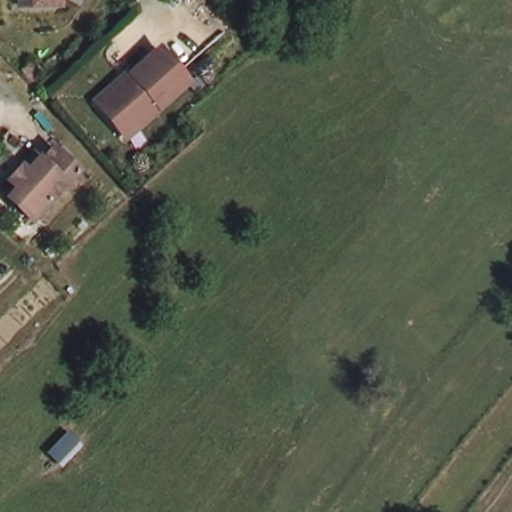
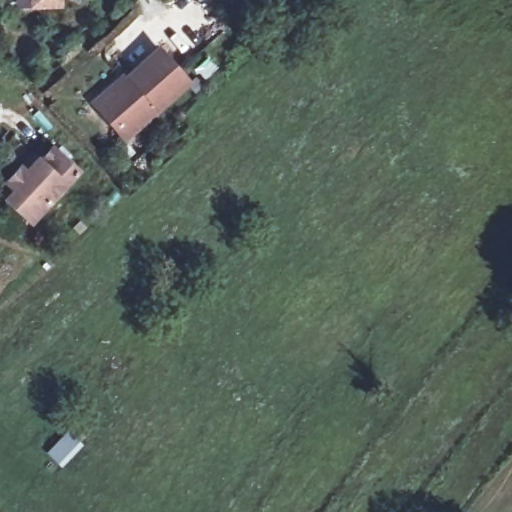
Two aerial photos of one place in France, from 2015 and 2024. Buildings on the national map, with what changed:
unchanged [(32,1),(31,0),(55,0),(55,1),(32,1)]
unchanged [(120,139),(96,112),(125,87),(129,90),(133,86),(132,84),(162,59),(190,91),(160,116),(127,146),(120,139)]
unchanged [(25,65),(32,74),(25,81),(18,71),(25,65)]
unchanged [(82,174),(32,220),(8,194),(0,185),(0,182),(8,174),(23,161),(37,149),(42,154),(47,161),(60,150),(82,174)]

